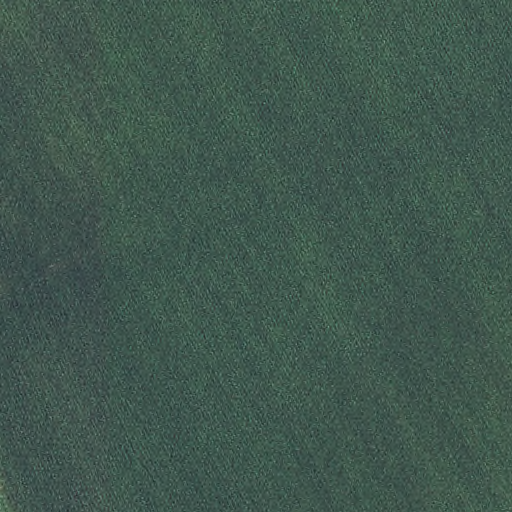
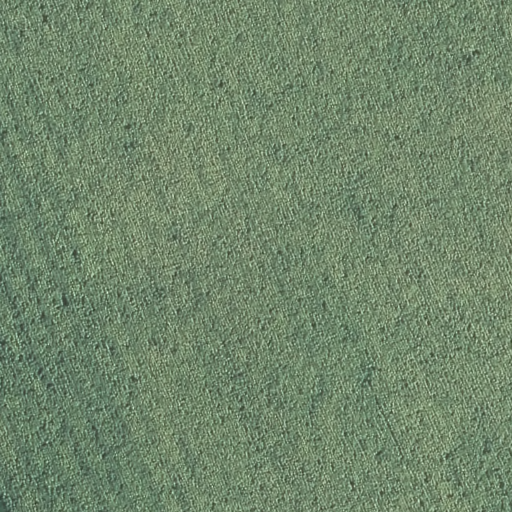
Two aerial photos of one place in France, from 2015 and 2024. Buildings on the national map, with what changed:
[]

